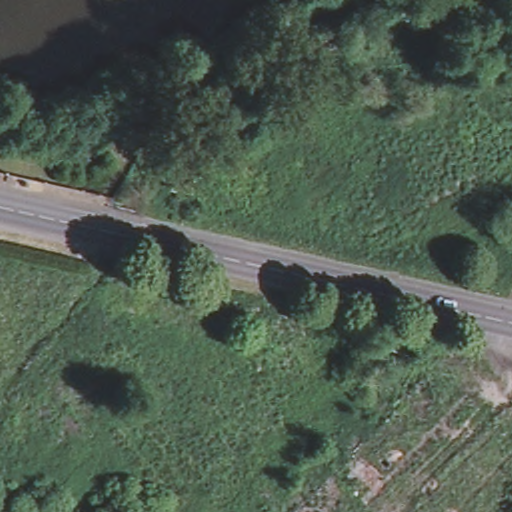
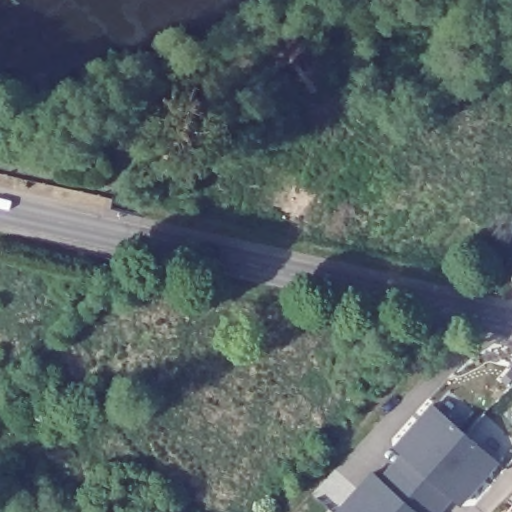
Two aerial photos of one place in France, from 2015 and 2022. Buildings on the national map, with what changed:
new [(461,507),(454,500),(444,512),(334,512),(371,470),(379,476),(401,452),(394,445),(432,402),(500,461),(461,507)]

